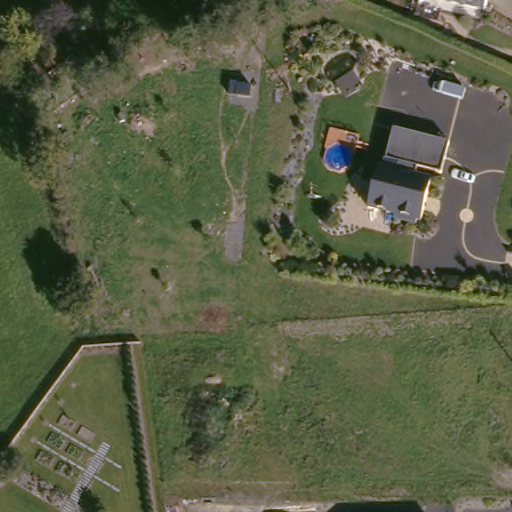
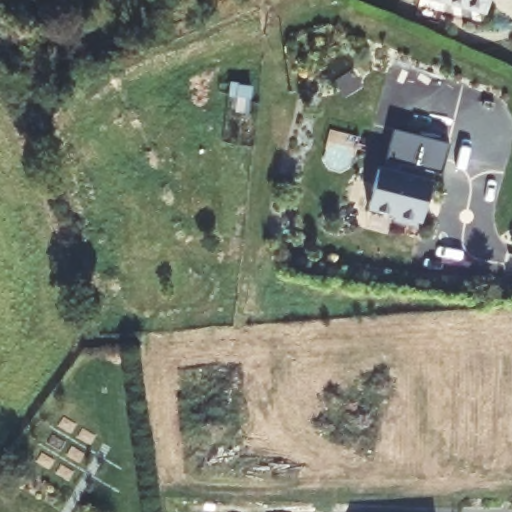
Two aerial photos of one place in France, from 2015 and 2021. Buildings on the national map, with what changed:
unchanged [(492,14),(442,0),(496,0),(492,14)]
unchanged [(448,141),(440,173),(416,167),(415,175),(430,179),(420,220),(416,219),(415,223),(393,218),(395,214),(367,207),(378,166),(395,170),(398,162),(385,159),(393,127),(448,141)]

